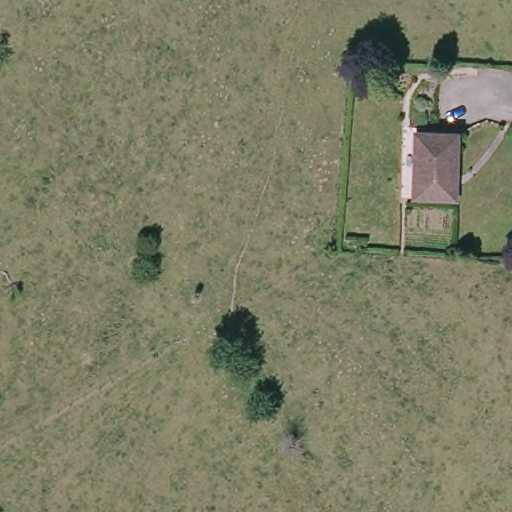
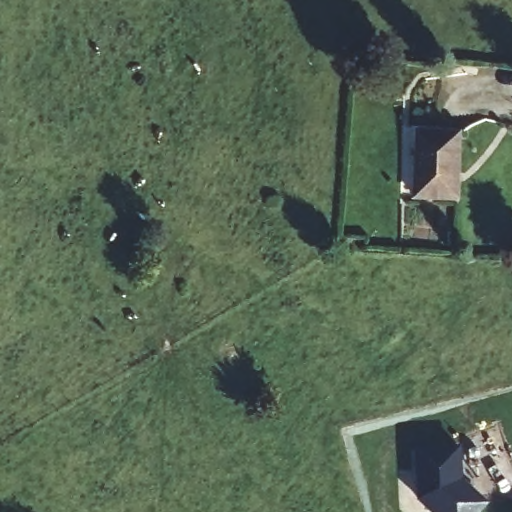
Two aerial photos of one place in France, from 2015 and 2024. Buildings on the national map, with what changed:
unchanged [(453,131),(450,195),(413,193),(417,129),(453,131)]
new [(459,482),(457,484),(467,493),(468,491),(484,506),(478,512),(428,512),(417,501),(415,451),(458,450),(459,482)]

